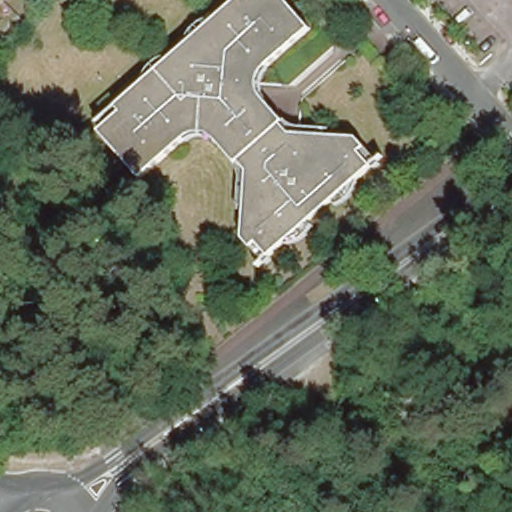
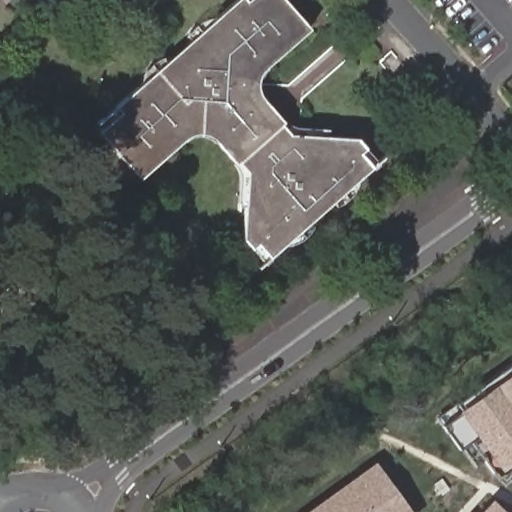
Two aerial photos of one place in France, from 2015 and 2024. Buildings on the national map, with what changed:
unchanged [(10,0),(0,10),(0,0),(10,0)]
unchanged [(254,244),(246,236),(249,169),(241,158),(237,161),(217,136),(211,132),(205,130),(196,130),(186,136),(181,141),(142,175),(101,129),(105,125),(123,109),(118,104),(237,0),(289,0),(312,26),(266,65),(262,71),(260,77),(260,84),(261,90),(285,118),(282,121),(291,131),(357,135),(367,145),(362,149),(374,163),(272,252),(260,239),(254,244)]
new [(448,423),(442,417),(459,405),(457,403),(512,364),(512,384),(452,431),(447,425),(448,423)]
new [(512,477),(507,482),(477,443),(469,451),(452,431),(512,384),(512,477)]
new [(382,465),(417,512),(316,512),(382,465)]
new [(509,512),(489,512),(498,502),(509,512)]

